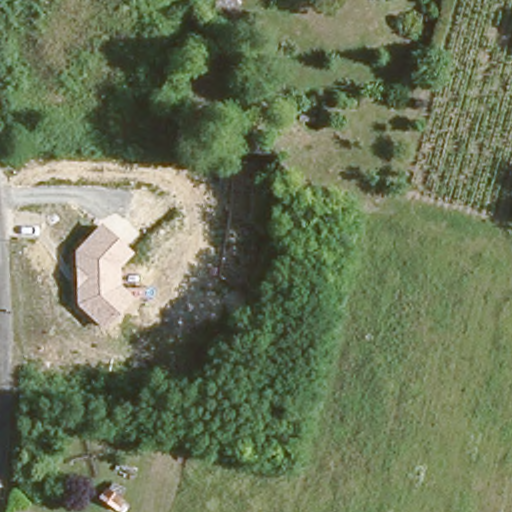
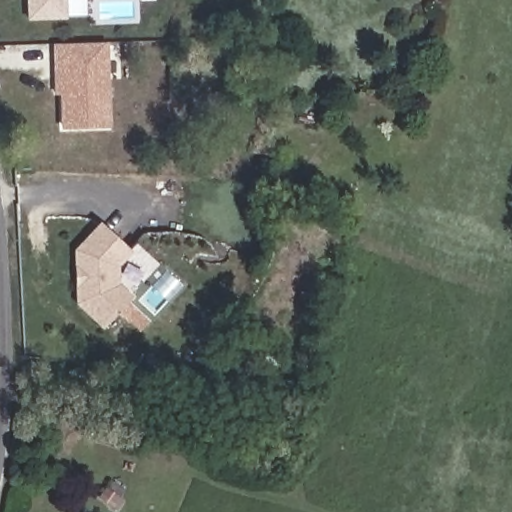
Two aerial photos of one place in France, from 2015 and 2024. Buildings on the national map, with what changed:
new [(22,14),(21,0),(57,0),(58,13),(22,14)]
new [(103,121),(59,123),(56,57),(57,90),(51,90),(50,57),(49,42),(99,39),(103,121)]
unchanged [(118,266),(119,283),(134,298),(102,330),(77,304),(75,249),(101,222),(132,252),(118,266)]
unchanged [(110,477),(132,494),(119,512),(115,512),(96,495),(110,477)]

